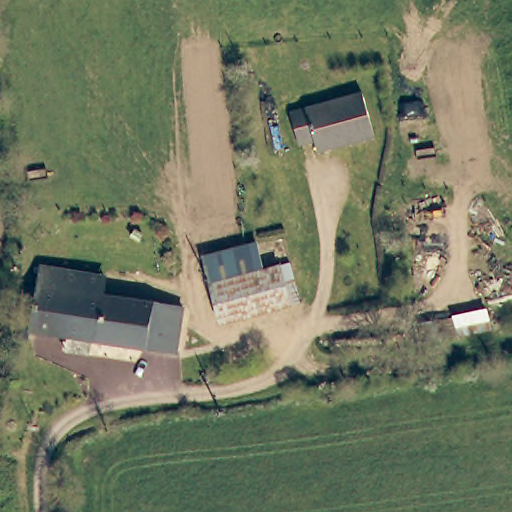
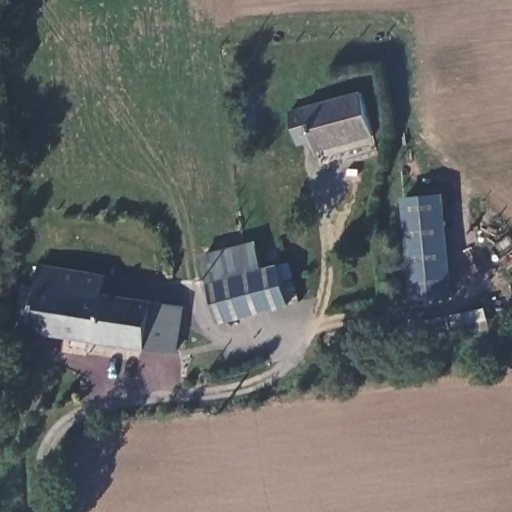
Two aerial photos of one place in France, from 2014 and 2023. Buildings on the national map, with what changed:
unchanged [(374,134),(318,149),(316,140),(298,143),(290,113),(363,93),(374,134)]
new [(414,300),(404,197),(444,193),(454,298),(414,300)]
unchanged [(220,323),(200,256),(250,243),(257,269),(280,265),(291,304),(220,323)]
unchanged [(61,334),(26,329),(38,263),(104,274),(100,297),(69,292),(61,334)]
unchanged [(61,334),(69,292),(100,297),(132,303),(125,345),(61,334)]
unchanged [(133,300),(184,308),(175,353),(125,345),(132,303),(133,300)]

